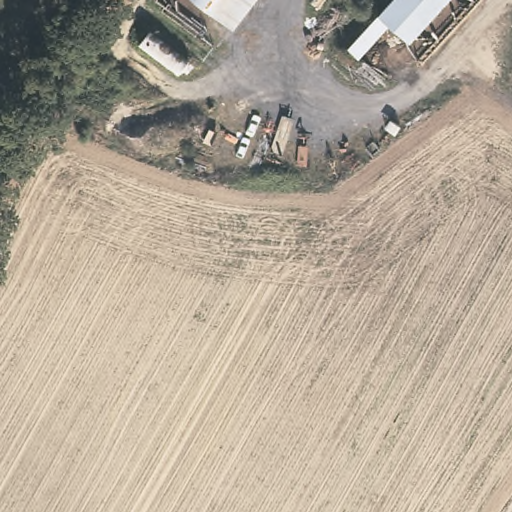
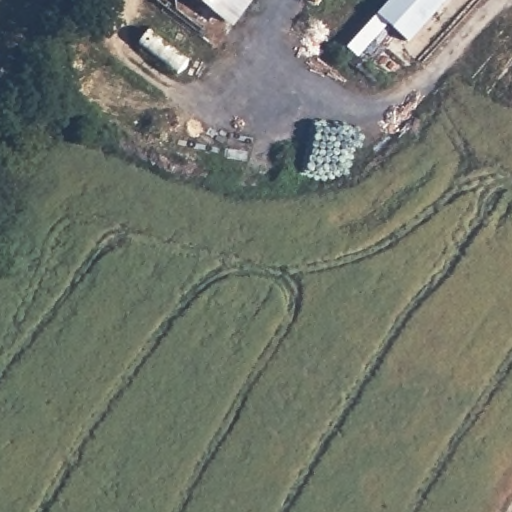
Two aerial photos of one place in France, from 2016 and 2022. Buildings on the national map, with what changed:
unchanged [(211,0),(256,0),(239,22),(211,0)]
unchanged [(380,14),(393,0),(447,0),(409,42),(380,14)]

